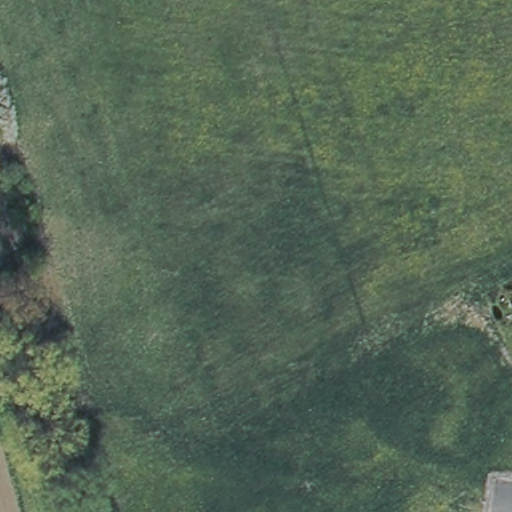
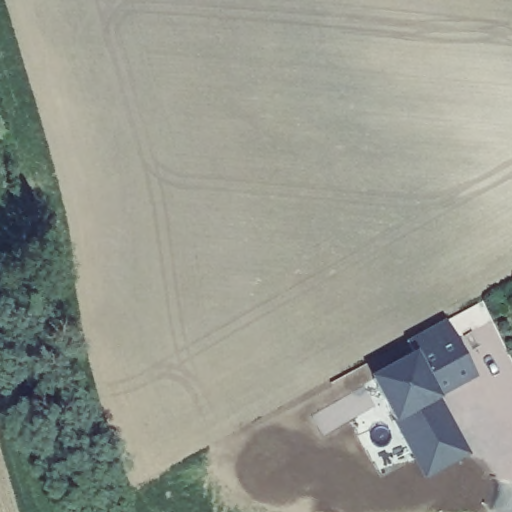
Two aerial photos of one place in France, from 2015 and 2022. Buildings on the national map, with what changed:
new [(477,379),(440,399),(440,401),(471,456),(423,482),(392,426),(368,379),(412,355),(407,342),(447,320),(477,379)]

